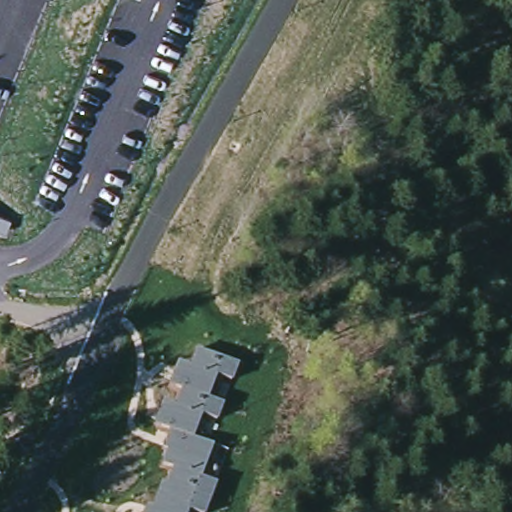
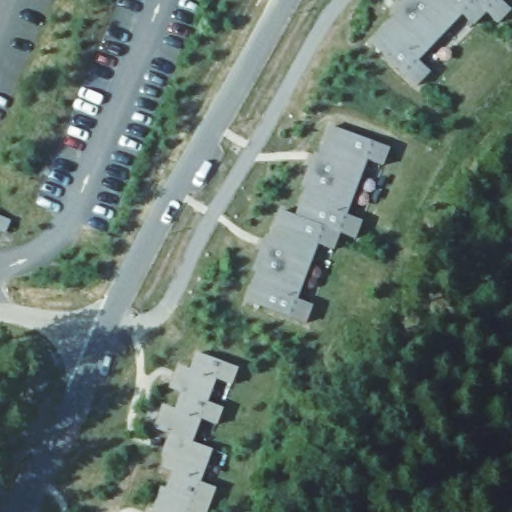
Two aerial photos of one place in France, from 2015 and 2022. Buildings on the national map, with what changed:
new [(390,14),(402,0),(501,0),(511,11),(499,25),(485,13),(474,26),(462,15),(419,61),(430,72),(417,85),(370,41),(393,17),(390,14)]
new [(256,273),(252,271),(265,237),(270,238),(280,210),(295,215),(305,188),(301,186),(314,151),(319,154),(330,126),(390,148),(384,166),(367,161),(347,216),(362,221),(356,239),(340,234),(335,251),(319,246),(297,300),(312,306),(307,323),(245,300),(256,273)]
unchanged [(240,367),(232,385),(217,380),(209,402),(225,407),(218,425),(202,420),(193,442),(214,449),(201,483),(216,487),(207,512),(146,512),(147,508),(152,510),(160,486),(166,487),(172,471),(160,468),(166,453),(162,452),(169,434),(155,428),(162,403),(175,407),(182,391),(169,387),(177,363),(189,366),(195,350),(240,367)]

